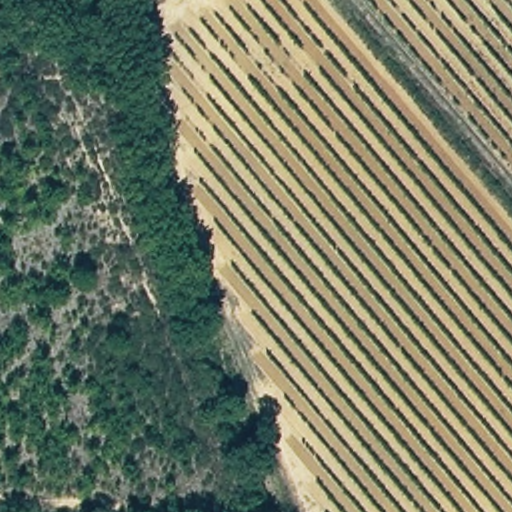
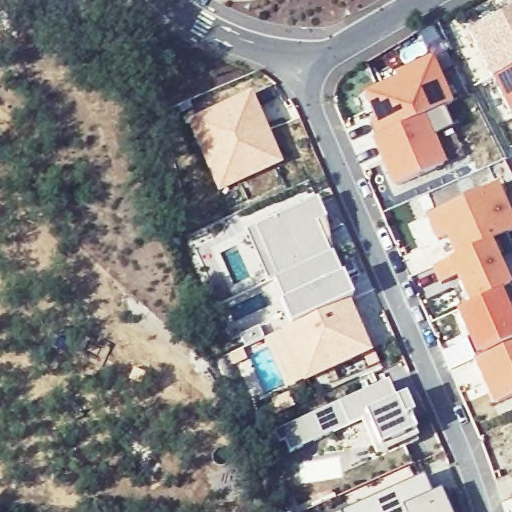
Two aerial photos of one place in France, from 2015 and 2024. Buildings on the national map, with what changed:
new [(469,31),(512,10),(512,68),(492,78),(469,31)]
new [(376,138),(369,122),(386,115),(375,90),(394,80),(392,75),(413,66),(430,59),(437,76),(450,106),(376,138)]
new [(511,112),(494,77),(512,68),(512,112),(511,112)]
new [(185,119),(245,93),(260,128),(262,134),(276,165),(235,183),(216,191),(207,170),(185,119)]
new [(453,130),(434,137),(446,164),(392,188),(372,140),(376,138),(442,109),(453,130)]
new [(488,245),(454,259),(445,239),(436,243),(425,217),(496,186),(512,223),(512,234),(488,245)]
new [(245,232),(253,228),(315,202),(324,222),(315,226),(328,256),(275,279),(266,283),(245,232)]
new [(454,259),(488,245),(507,291),(467,307),(448,262),(454,259)]
new [(332,254),(343,278),(342,278),(352,302),(347,304),(288,327),(278,304),(285,301),(274,279),(275,279),(328,256),(332,254)]
new [(507,291),(512,288),(512,343),(473,360),(454,313),(467,307),(507,291)]
new [(281,330),(347,304),(369,356),(303,380),(281,330)]
new [(485,388),(473,360),(512,343),(512,397),(498,404),(493,406),(485,388)]
new [(395,402),(404,398),(412,416),(407,418),(418,442),(382,458),(366,420),(284,456),(274,433),(364,393),(358,379),(381,369),(395,402)]
new [(434,504),(431,496),(440,492),(443,500),(449,512),(342,512),(423,477),(434,504)]

